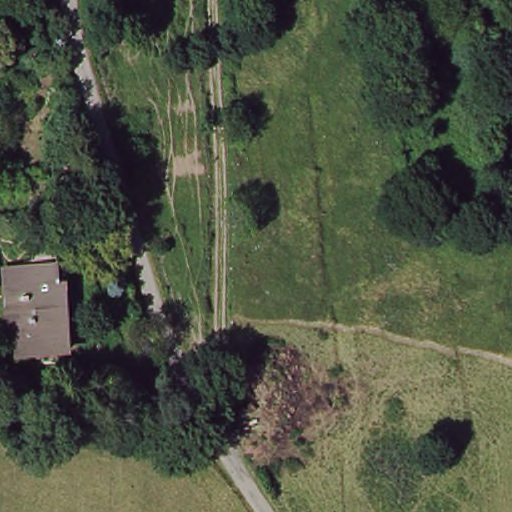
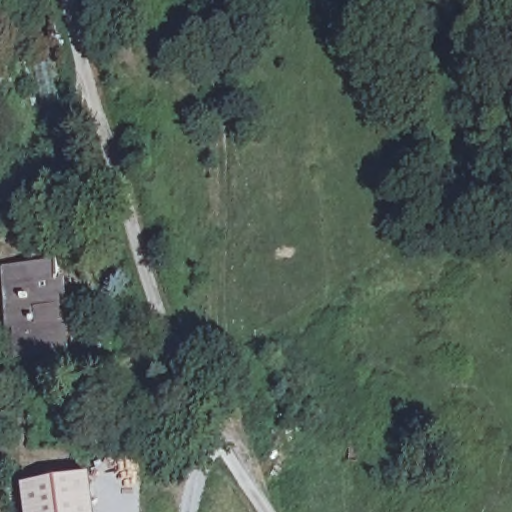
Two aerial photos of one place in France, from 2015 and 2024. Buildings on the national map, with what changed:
unchanged [(1,324),(1,285),(60,280),(63,373),(15,376),(11,324),(1,324)]
new [(21,484),(91,475),(96,512),(25,512),(21,484)]

